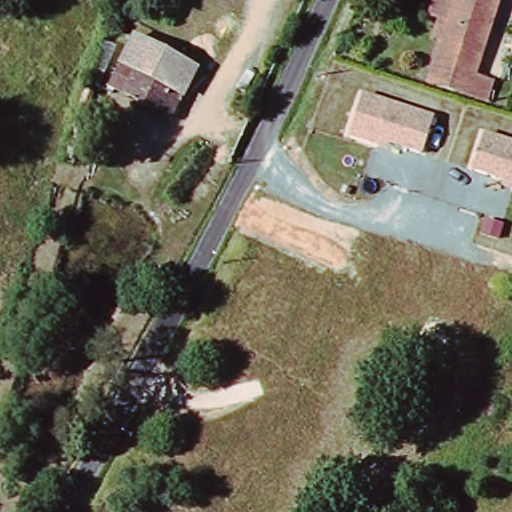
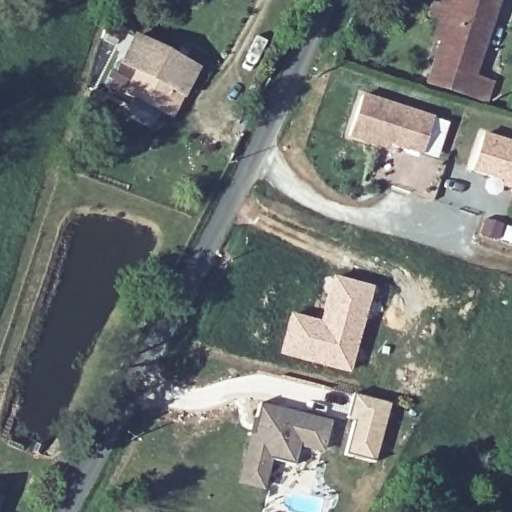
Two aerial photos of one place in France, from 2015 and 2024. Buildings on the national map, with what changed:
unchanged [(430,85),(449,26),(427,19),(433,0),(500,0),(470,99),(430,85)]
unchanged [(109,89),(130,39),(195,65),(170,116),(142,104),(109,89)]
unchanged [(433,115),(421,154),(388,143),(386,151),(348,139),(362,92),(433,115)]
unchanged [(512,141),(512,190),(501,187),(503,180),(472,170),(483,133),(512,141)]
new [(288,311),(317,320),(329,275),(373,286),(349,373),(277,354),(288,311)]
new [(351,419),(347,417),(353,395),(389,403),(374,462),(342,454),(351,419)]
new [(257,406),(328,423),(321,451),(299,445),(294,466),(269,460),(262,488),(238,482),(257,406)]
new [(5,507),(3,512),(0,512),(0,495),(8,497),(5,507)]

